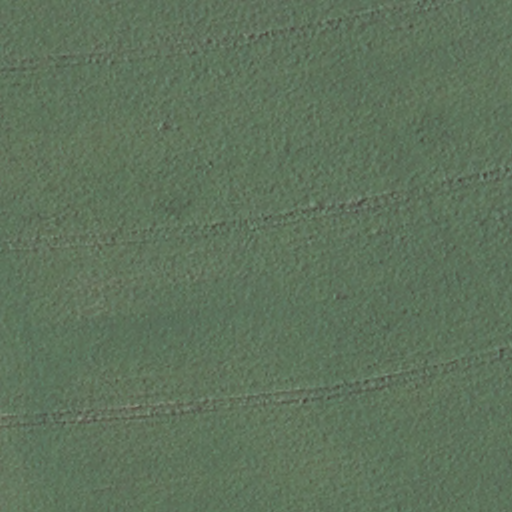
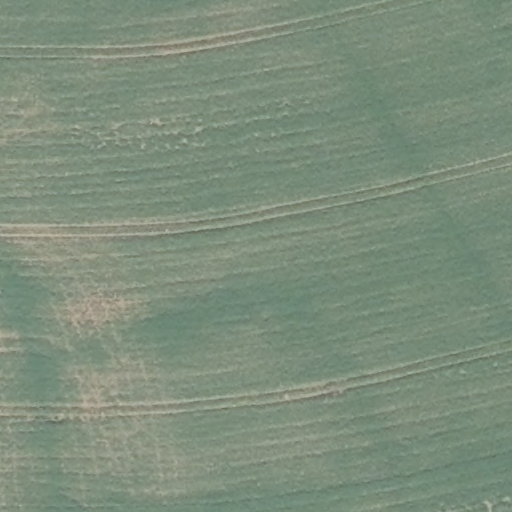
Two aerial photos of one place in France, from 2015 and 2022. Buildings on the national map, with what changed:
[]

